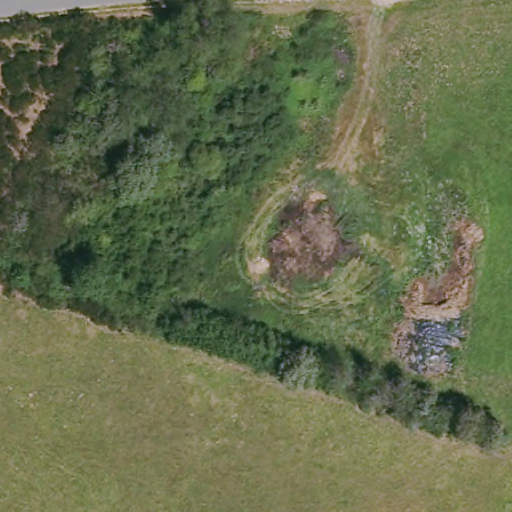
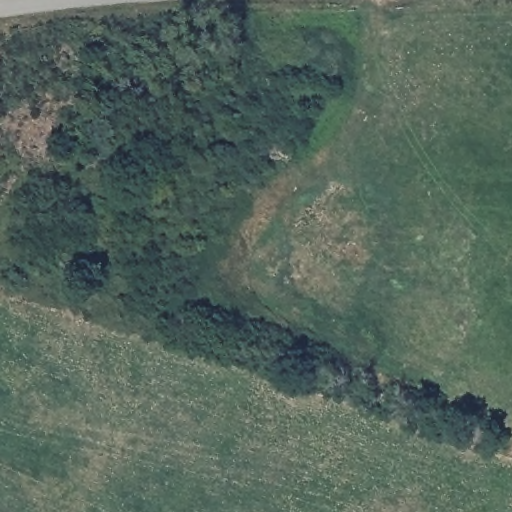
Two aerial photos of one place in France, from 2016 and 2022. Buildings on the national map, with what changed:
[]

